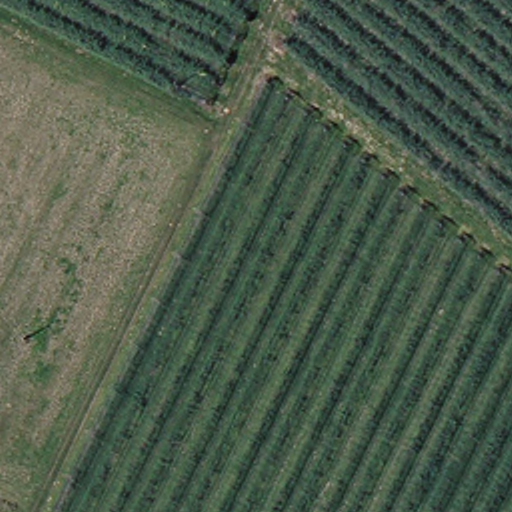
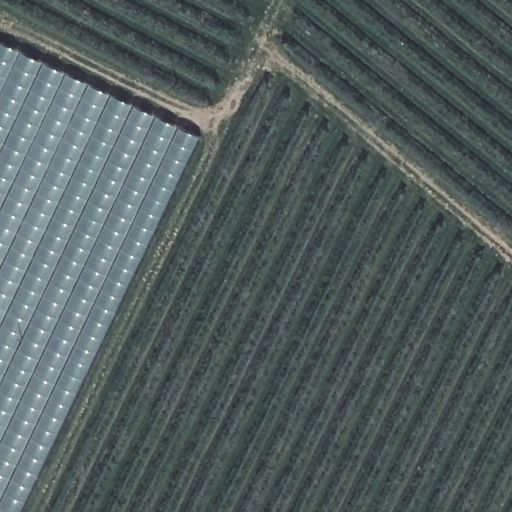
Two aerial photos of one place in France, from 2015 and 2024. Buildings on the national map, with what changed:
new [(23,512),(0,512),(0,50),(3,43),(202,138),(23,512)]

